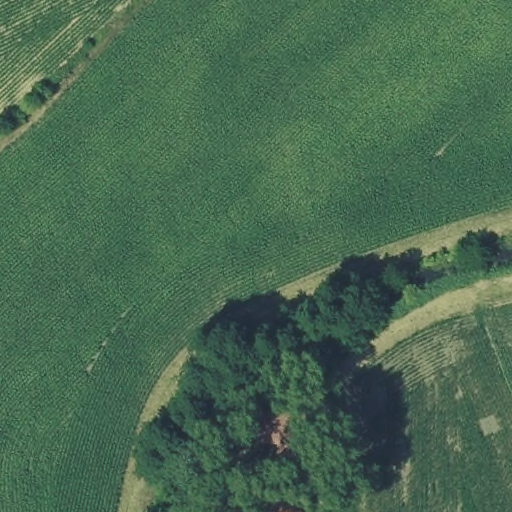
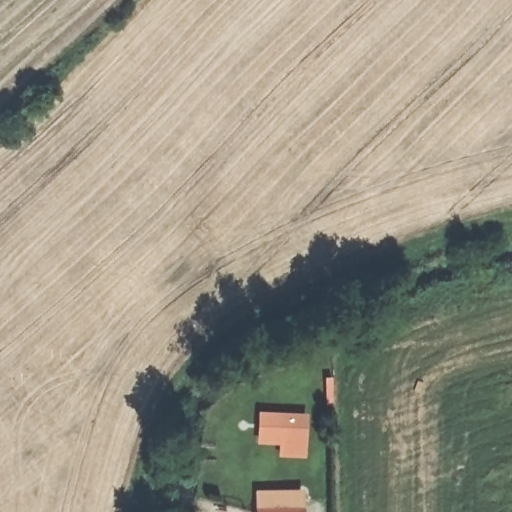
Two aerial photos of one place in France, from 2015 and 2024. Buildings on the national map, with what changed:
new [(306,458),(278,457),(277,445),(255,444),(257,411),(307,413),(306,458)]
new [(303,512),(257,512),(257,492),(303,490),(303,512)]
demolished [(258,508),(306,508),(306,512),(258,512),(258,508)]

